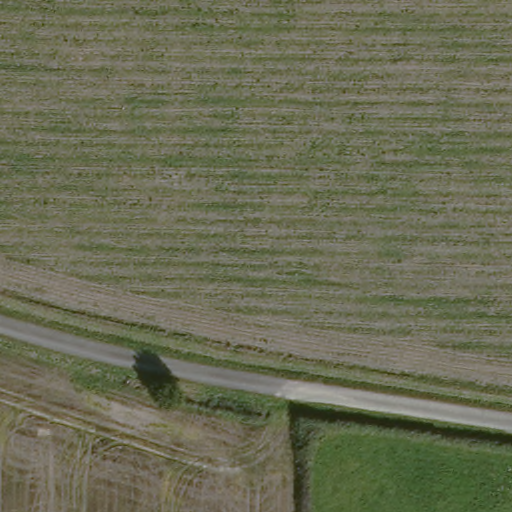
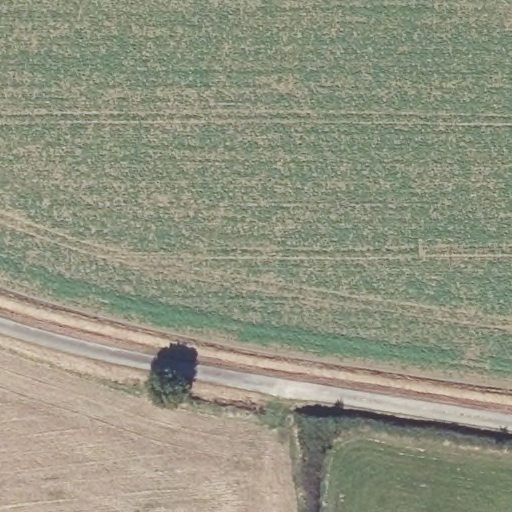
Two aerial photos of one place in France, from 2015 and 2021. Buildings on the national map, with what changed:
[]

